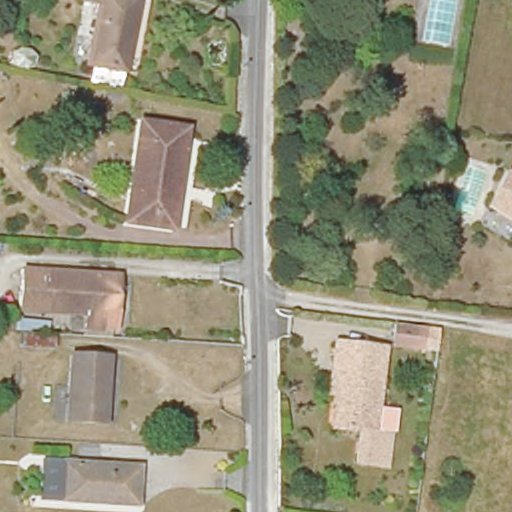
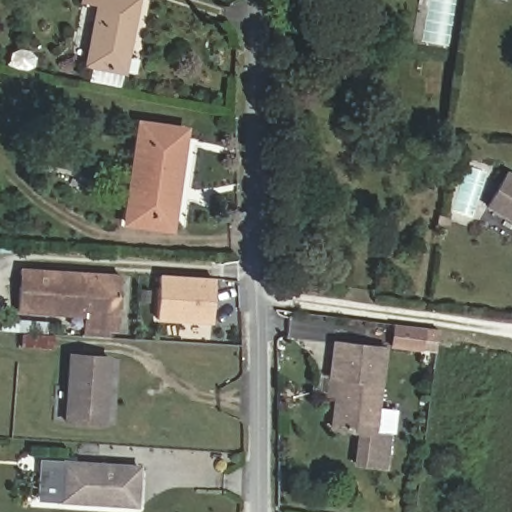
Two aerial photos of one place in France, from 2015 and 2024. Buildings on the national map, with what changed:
unchanged [(126,62),(86,55),(97,0),(136,0),(126,62)]
unchanged [(140,120),(183,123),(180,194),(136,190),(140,120)]
unchanged [(493,197),(512,179),(512,217),(493,197)]
unchanged [(180,194),(178,227),(134,224),(136,190),(180,194)]
unchanged [(98,318),(22,313),(24,274),(24,266),(129,272),(129,281),(127,311),(127,319),(98,318)]
new [(156,321),(159,275),(214,278),(211,325),(156,321)]
unchanged [(434,343),(420,341),(419,349),(390,345),(393,324),(436,330),(434,343)]
unchanged [(375,403),(395,405),(385,468),(350,464),(354,429),(336,427),(329,426),(335,378),(329,377),(333,341),(346,343),(372,347),(382,349),(375,403)]
unchanged [(68,416),(73,344),(113,348),(109,421),(68,416)]
unchanged [(137,465),(137,504),(55,497),(56,459),(137,465)]

